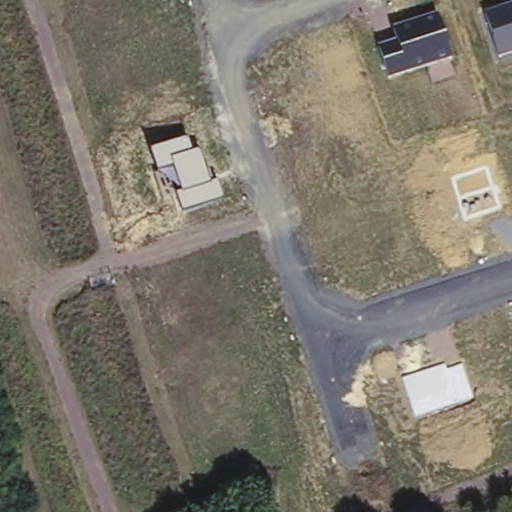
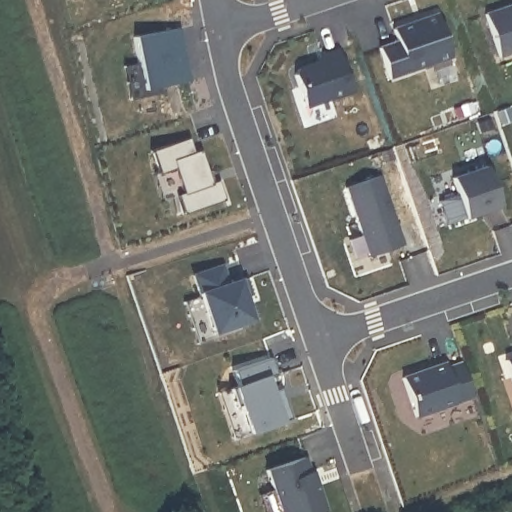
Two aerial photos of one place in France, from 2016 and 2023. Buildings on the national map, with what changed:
unchanged [(484,13),(512,3),(512,55),(500,59),(484,13)]
unchanged [(388,80),(378,48),(398,40),(395,30),(438,15),(453,58),(388,80)]
new [(190,79),(164,84),(165,93),(129,99),(125,64),(139,59),(136,34),(181,25),(190,79)]
new [(324,54),(323,49),(340,43),(352,84),(305,99),(295,68),(297,63),(324,54)]
unchanged [(185,215),(178,194),(182,193),(157,174),(151,154),(186,141),(192,155),(199,153),(211,187),(220,183),(226,200),(185,215)]
new [(487,159),(500,199),(467,212),(453,172),(487,159)]
new [(382,169),(404,239),(371,249),(346,182),(382,169)]
new [(231,282),(239,279),(245,276),(250,294),(244,294),(251,322),(210,334),(197,292),(190,273),(223,263),(231,282)]
new [(512,351),(512,371),(506,353),(512,351)]
new [(446,357),(448,361),(463,356),(475,389),(417,409),(402,372),(446,357)]
new [(275,373),(266,376),(272,392),(281,389),(290,416),(281,418),(282,422),(247,434),(231,387),(237,384),(232,369),(269,357),(275,373)]
new [(268,462),(305,449),(310,466),(312,466),(325,504),(302,512),(284,512),(268,462)]

